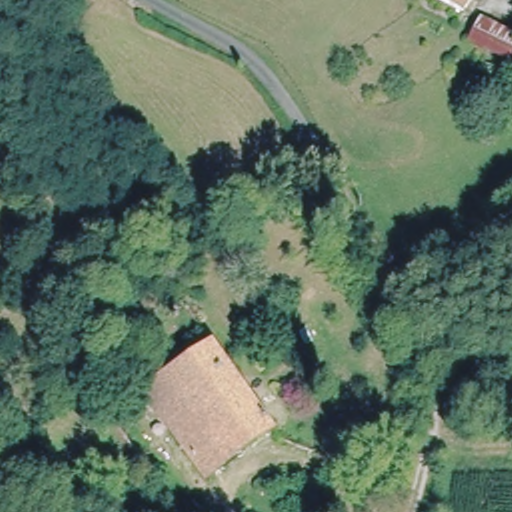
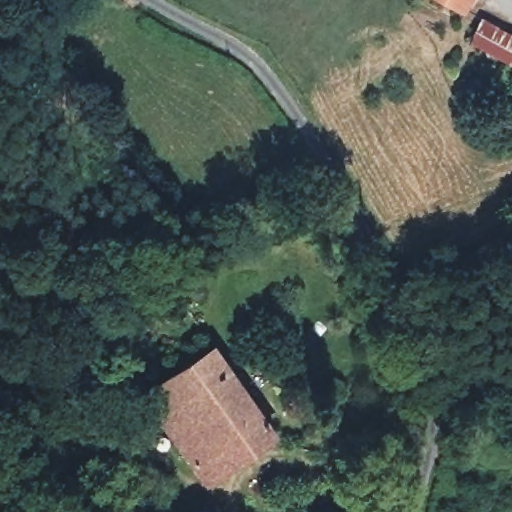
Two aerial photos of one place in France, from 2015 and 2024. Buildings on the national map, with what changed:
unchanged [(438,0),(466,0),(460,12),(438,0)]
unchanged [(512,35),(512,51),(506,62),(469,40),(480,18),(512,35)]
unchanged [(212,345),(274,428),(210,477),(147,393),(212,345)]

